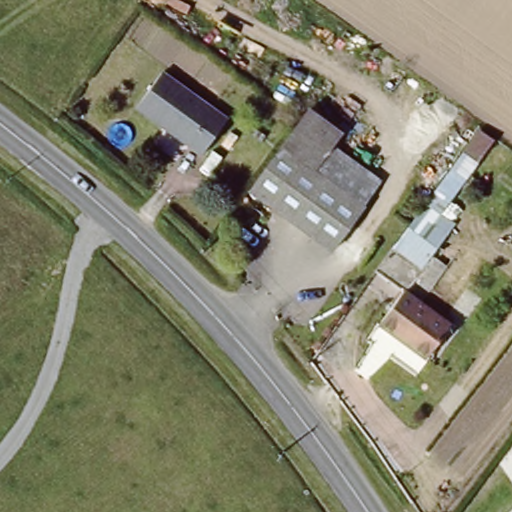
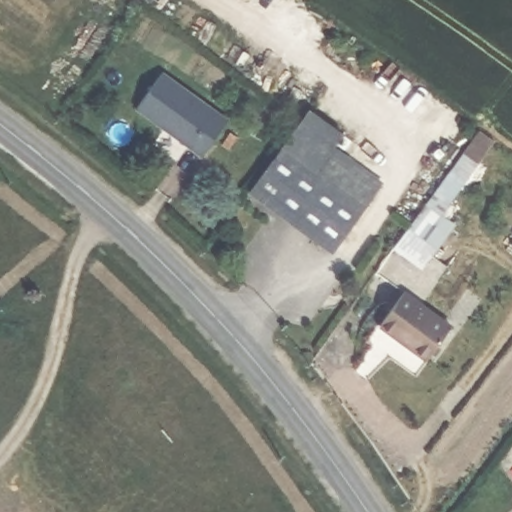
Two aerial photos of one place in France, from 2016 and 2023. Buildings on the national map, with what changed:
unchanged [(227,115),(204,147),(142,102),(166,71),(227,115)]
unchanged [(360,202),(279,149),(310,106),(343,132),(332,146),(382,180),(362,204),(360,202)]
unchanged [(375,270),(392,247),(427,203),(479,129),(494,140),(440,214),(456,223),(436,249),(431,255),(447,267),(422,303),(403,289),(375,270)]
unchanged [(362,204),(334,247),(250,187),(279,149),(362,204)]
unchanged [(403,289),(449,322),(427,353),(381,320),(403,289)]

